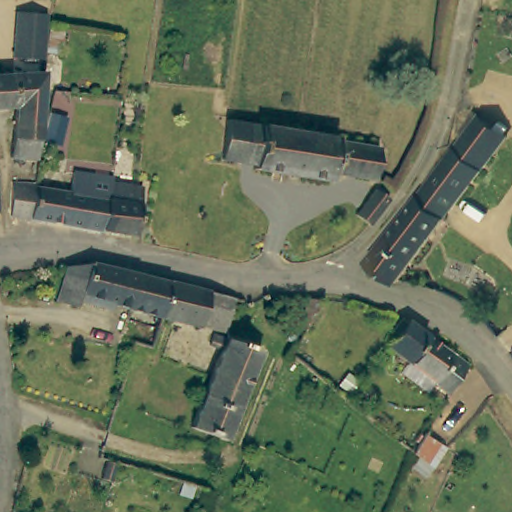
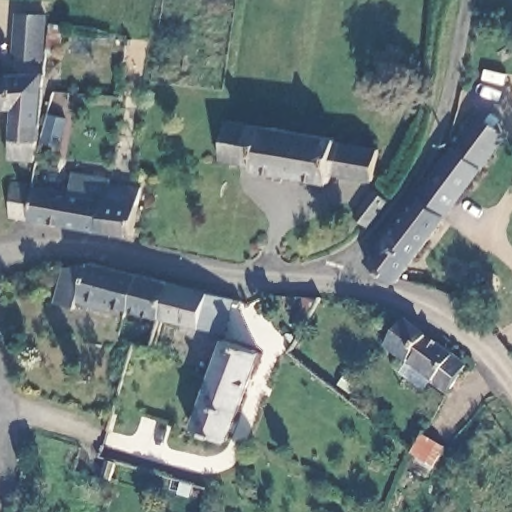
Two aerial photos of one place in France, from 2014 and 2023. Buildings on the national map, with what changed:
unchanged [(47,14),(42,59),(14,56),(18,11),(47,14)]
unchanged [(19,159),(17,124),(15,111),(0,112),(0,72),(8,72),(39,70),(41,122),(42,160),(19,159)]
unchanged [(482,114),(511,135),(491,160),(462,139),(482,114)]
unchanged [(336,134),(381,140),(377,172),(332,167),(330,177),(254,169),(255,164),(222,159),(228,116),(236,118),(313,127),(337,130),(336,134)]
unchanged [(392,280),(362,259),(404,208),(448,154),(462,139),(491,160),(482,170),(392,280)]
unchanged [(72,187),(76,167),(110,173),(97,227),(47,217),(48,209),(33,207),(36,180),(72,187)]
unchanged [(110,173),(129,177),(142,180),(130,233),(97,227),(110,173)]
unchanged [(356,205),(378,180),(393,193),(368,219),(356,205)]
unchanged [(2,203),(4,219),(0,219),(0,191),(2,203)]
unchanged [(80,304),(78,308),(55,302),(67,254),(92,259),(80,304)]
unchanged [(92,259),(166,275),(161,307),(132,302),(127,304),(124,309),(105,304),(103,309),(80,304),(92,259)]
unchanged [(166,275),(238,290),(228,332),(182,321),(159,316),(161,307),(166,275)]
unchanged [(447,388),(407,361),(385,346),(406,315),(428,331),(469,359),(465,364),(471,372),(455,394),(447,388)]
unchanged [(197,428),(222,351),(212,348),(215,336),(226,338),(263,349),(233,440),(199,429),(197,428)]
unchanged [(434,464),(413,450),(424,433),(443,447),(434,464)]
unchanged [(104,462),(109,452),(120,455),(112,481),(100,477),(104,462)]

